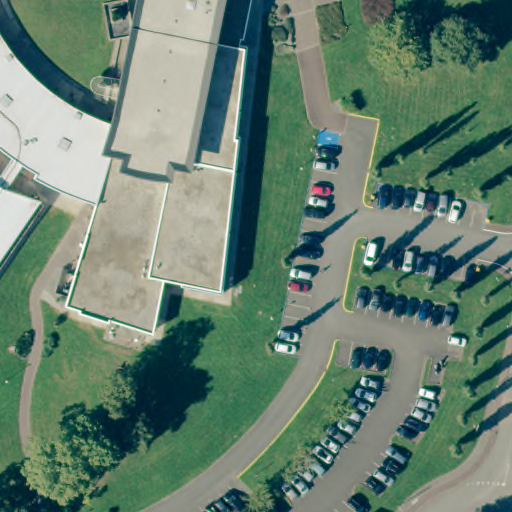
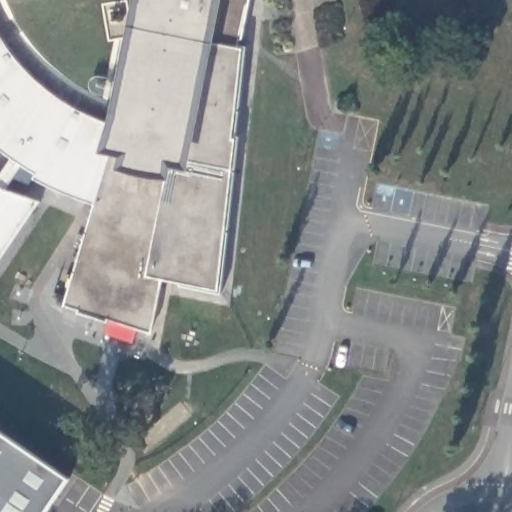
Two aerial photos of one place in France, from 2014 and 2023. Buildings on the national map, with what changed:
unchanged [(241,37),(238,37),(236,45),(241,46),(233,135),(236,136),(217,287),(161,276),(150,330),(107,317),(106,319),(77,310),(78,307),(63,303),(85,230),(86,230),(94,202),(68,193),(46,184),(32,175),(34,171),(19,164),(4,187),(39,199),(39,200),(37,200),(0,255),(0,170),(10,156),(0,148),(0,35),(1,37),(13,54),(26,70),(41,84),(58,96),(86,111),(116,124),(145,29),(144,28),(143,26),(148,26),(154,0),(249,0),(241,37)]
new [(68,479),(45,512),(0,512),(0,433),(68,479)]

